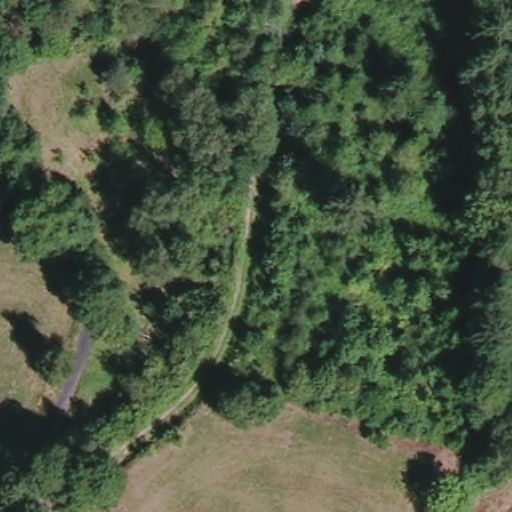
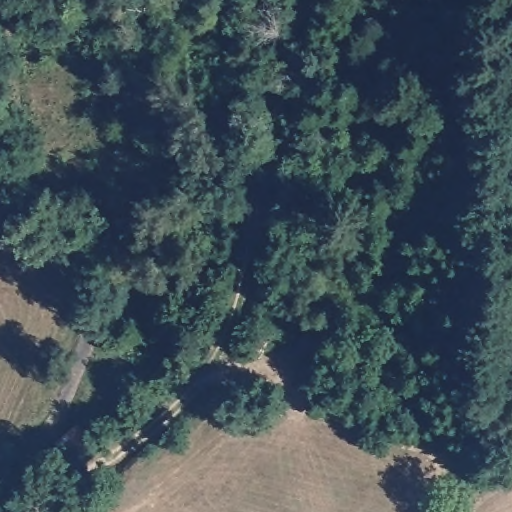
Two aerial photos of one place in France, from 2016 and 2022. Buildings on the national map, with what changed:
unchanged [(60,444),(82,427),(92,442),(68,458),(60,444)]

